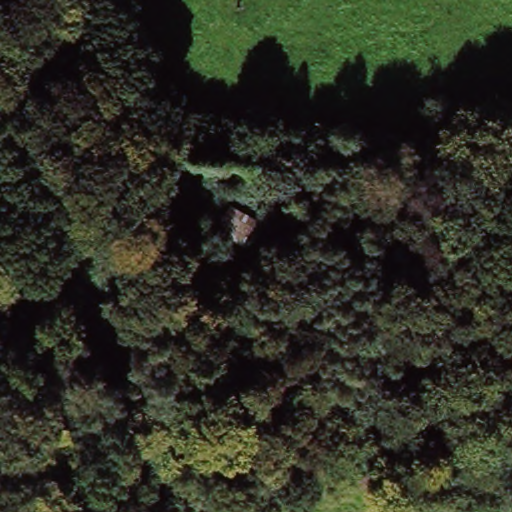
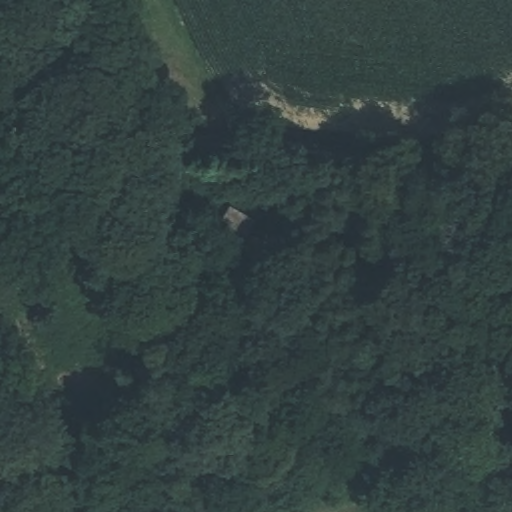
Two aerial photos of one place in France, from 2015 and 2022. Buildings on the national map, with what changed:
unchanged [(242,250),(215,233),(231,207),(255,222),(242,250)]

